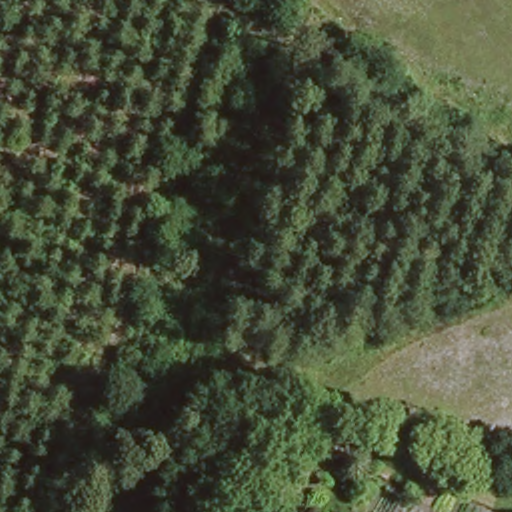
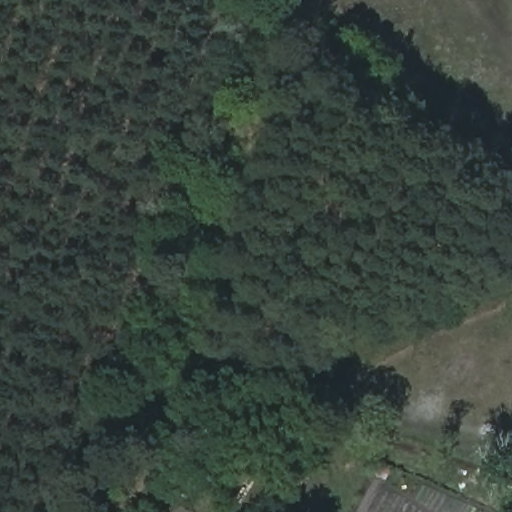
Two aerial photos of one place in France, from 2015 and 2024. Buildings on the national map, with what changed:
[]

